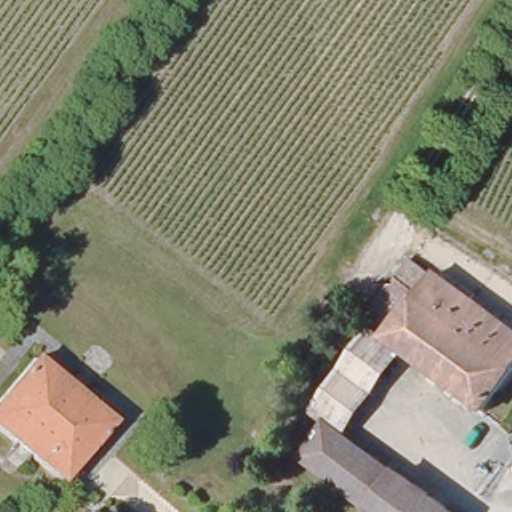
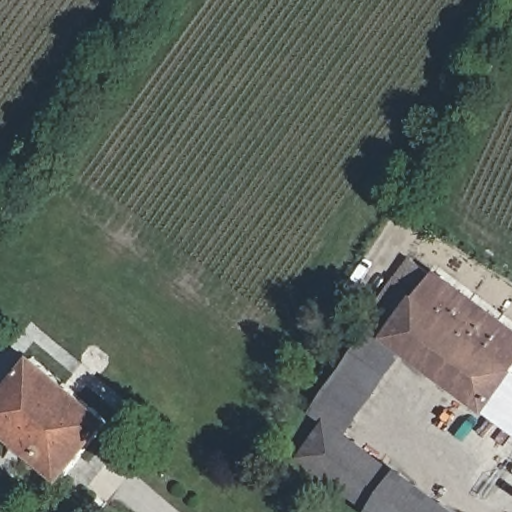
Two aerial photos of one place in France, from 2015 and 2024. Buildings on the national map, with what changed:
unchanged [(371,314),(411,255),(512,335),(512,378),(485,415),(409,353),(392,339),(395,333),(371,314)]
unchanged [(409,353),(345,437),(329,425),(313,413),(377,329),(392,339),(409,353)]
unchanged [(103,425),(54,483),(0,436),(0,391),(27,358),(103,425)]
new [(512,432),(485,415),(512,377),(512,432)]
unchanged [(345,437),(383,465),(355,503),(304,462),(329,425),(345,437)]
unchanged [(399,477),(402,477),(450,512),(368,512),(355,503),(383,465),(399,477)]

